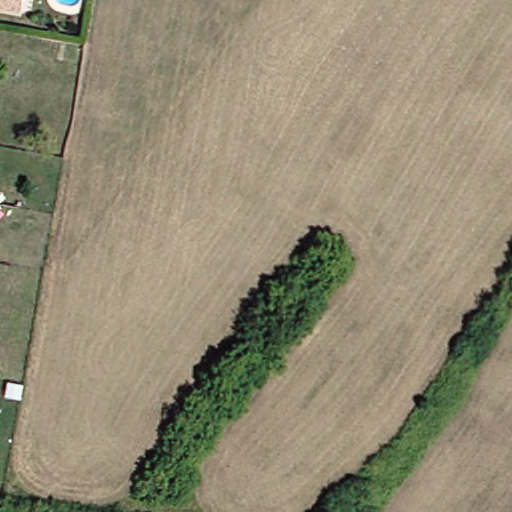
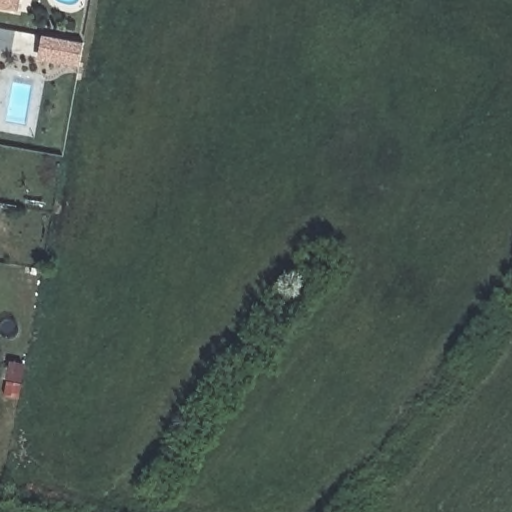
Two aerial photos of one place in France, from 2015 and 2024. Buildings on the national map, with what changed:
unchanged [(0,4),(0,0),(11,0),(10,6),(0,4)]
new [(44,36),(83,42),(79,65),(40,58),(44,36)]

